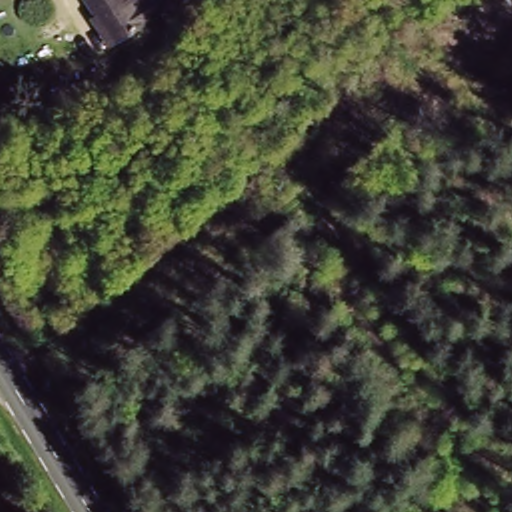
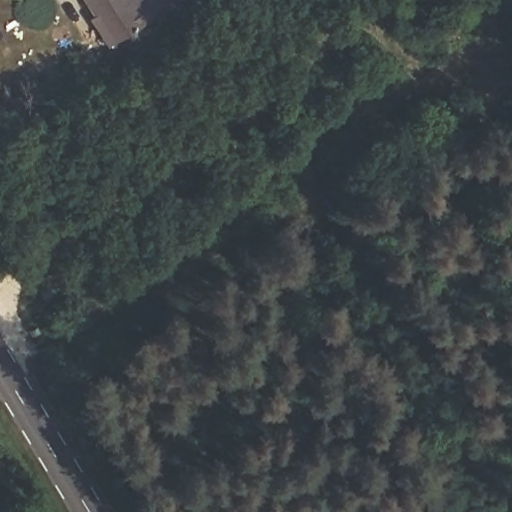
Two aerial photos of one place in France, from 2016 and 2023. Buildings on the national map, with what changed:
unchanged [(86,0),(180,0),(112,41),(86,0)]

